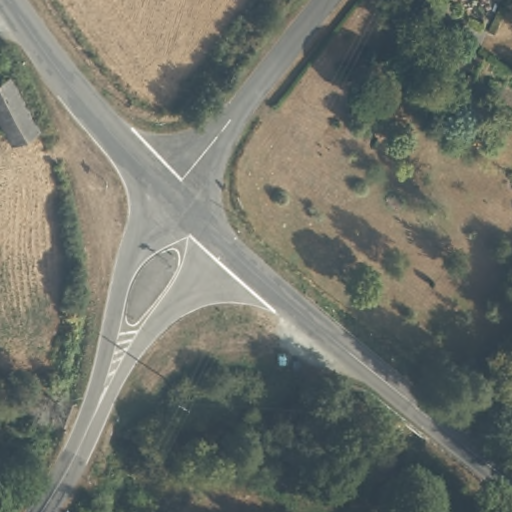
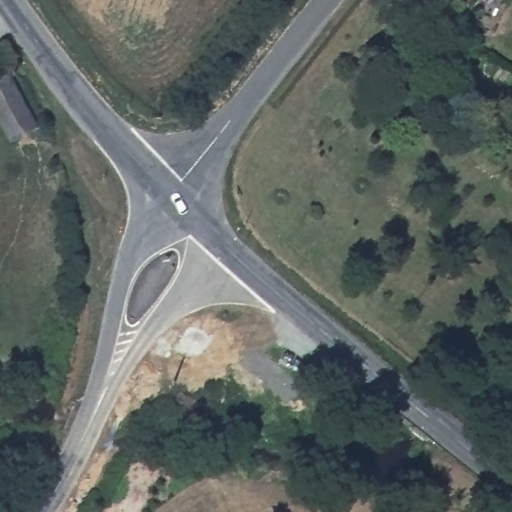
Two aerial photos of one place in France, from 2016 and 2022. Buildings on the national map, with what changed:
unchanged [(18,152),(0,120),(0,66),(2,65),(42,137),(18,152)]

